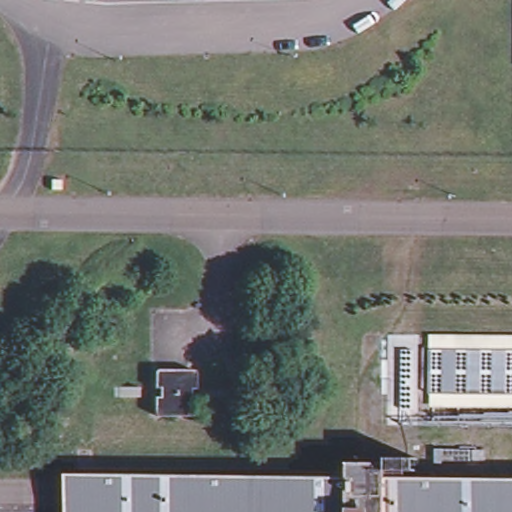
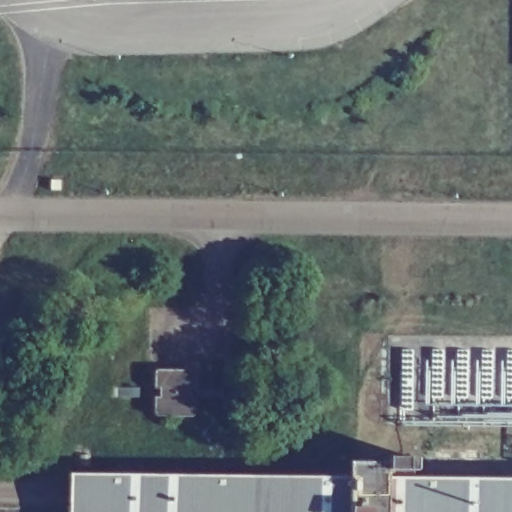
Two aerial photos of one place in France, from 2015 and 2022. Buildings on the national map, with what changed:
unchanged [(419,333),(512,334),(512,424),(418,423),(419,333)]
unchanged [(147,374),(147,373),(148,373),(148,372),(148,371),(149,371),(150,370),(151,370),(153,370),(169,370),(171,370),(176,370),(186,371),(187,371),(188,371),(188,372),(189,373),(189,374),(189,375),(188,414),(188,415),(188,416),(187,417),(186,417),(186,418),(184,418),(150,417),(149,417),(148,417),(148,416),(147,415),(146,414),(147,374)]
unchanged [(106,400),(107,390),(132,390),(131,400),(106,400)]
unchanged [(63,398),(64,391),(73,391),(73,398),(63,398)]
unchanged [(486,450),(486,451),(485,461),(438,461),(438,452),(438,450),(486,450)]
unchanged [(426,465),(398,465),(397,452),(425,452),(426,465)]
unchanged [(512,512),(69,512),(69,469),(512,475),(512,512)]

